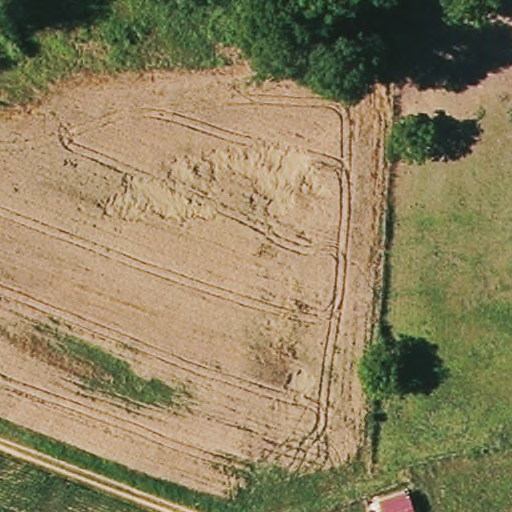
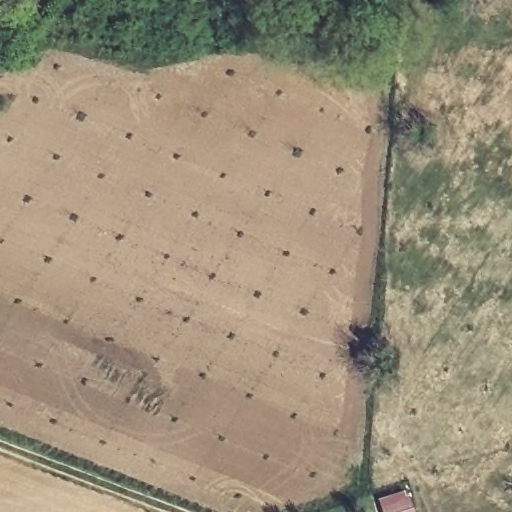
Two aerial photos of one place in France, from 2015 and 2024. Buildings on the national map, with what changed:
unchanged [(415,512),(380,512),(376,499),(408,490),(415,512)]

